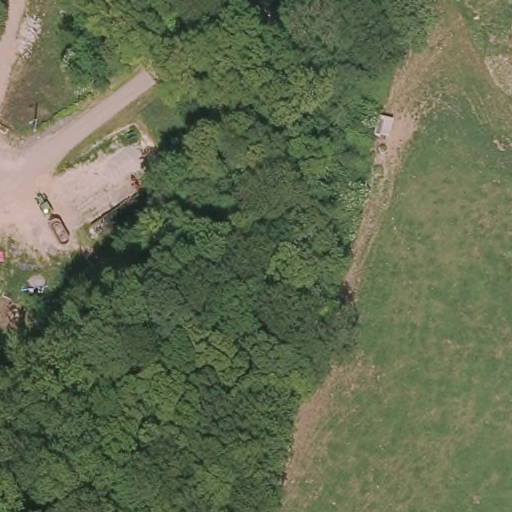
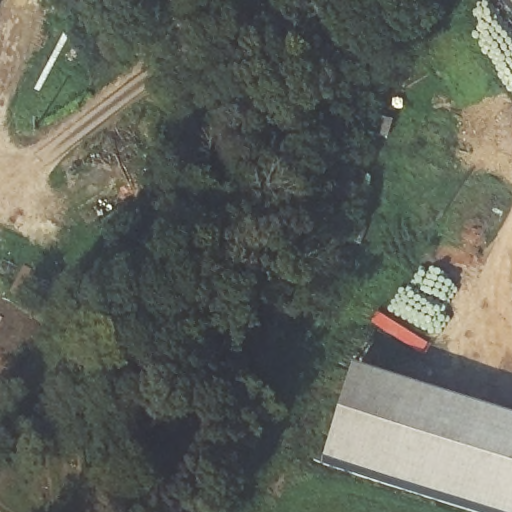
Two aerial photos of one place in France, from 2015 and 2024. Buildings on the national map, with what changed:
new [(512,0),(512,11),(502,0),(512,0)]
new [(512,512),(483,512),(321,463),(350,363),(512,415),(512,512)]

